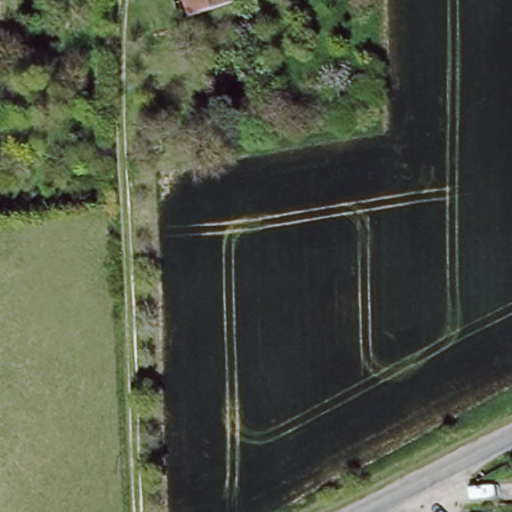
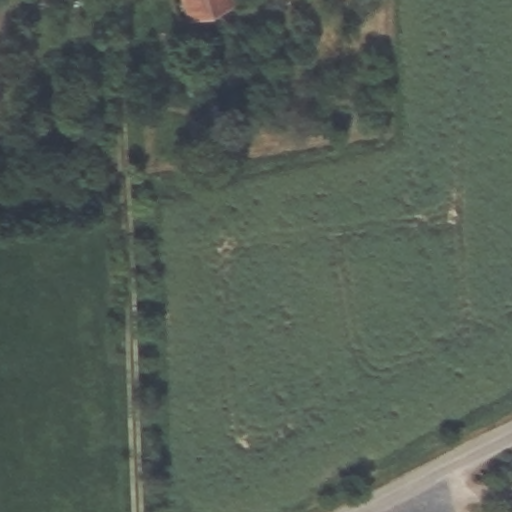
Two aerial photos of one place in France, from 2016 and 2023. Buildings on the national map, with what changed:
unchanged [(184,20),(178,4),(190,0),(234,0),(235,2),(184,20)]

